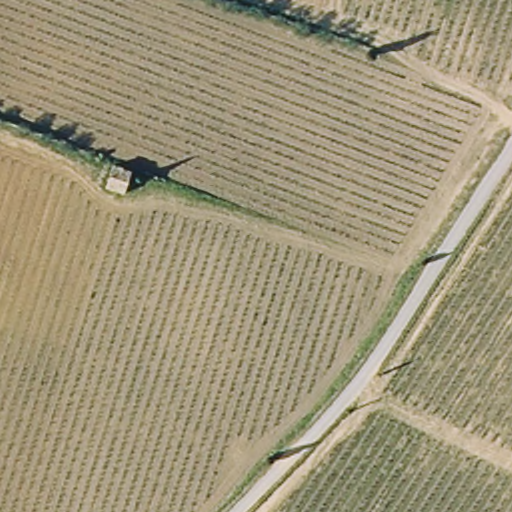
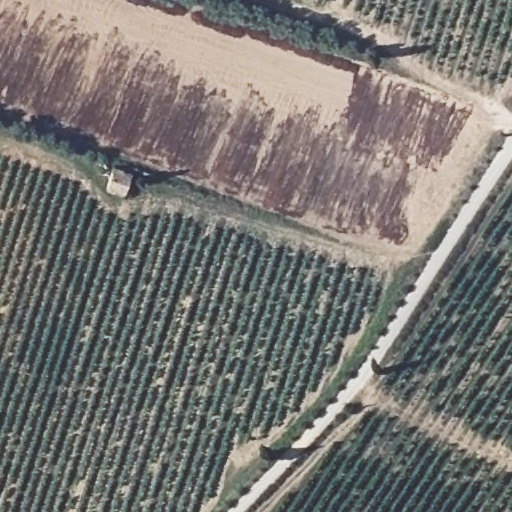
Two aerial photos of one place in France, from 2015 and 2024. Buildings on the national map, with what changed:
unchanged [(133,170),(126,193),(107,189),(113,165),(133,170)]

